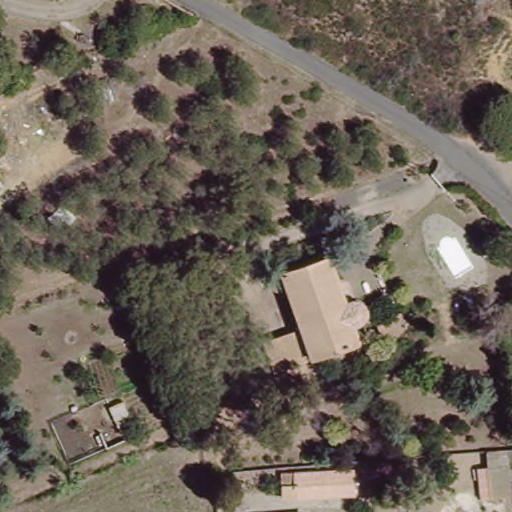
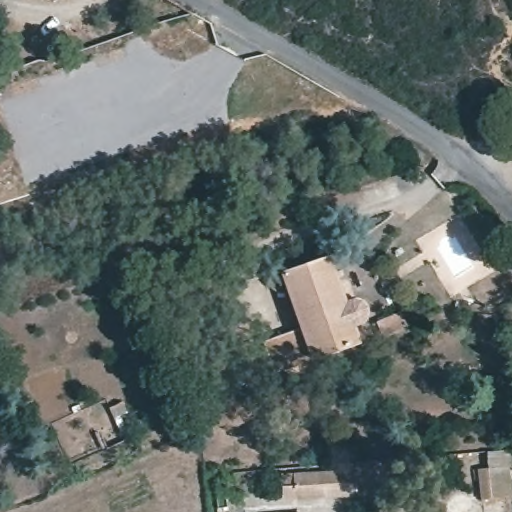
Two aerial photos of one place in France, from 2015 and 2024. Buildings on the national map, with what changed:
unchanged [(278,272),(324,257),(341,306),(346,305),(352,306),(357,309),(359,314),(356,320),(352,323),(348,325),(353,343),(307,357),(278,272)]
unchanged [(394,305),(402,333),(380,344),(374,323),(394,305)]
unchanged [(258,340),(288,329),(300,360),(270,371),(258,340)]
unchanged [(356,465),(358,496),(283,497),(284,468),(356,465)]
unchanged [(512,501),(482,504),(477,471),(510,467),(512,484),(512,501)]

